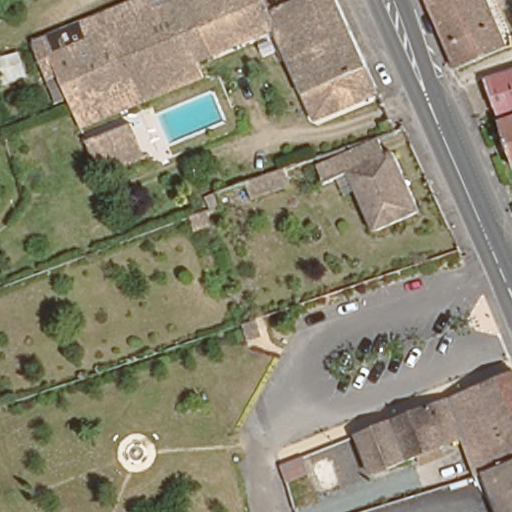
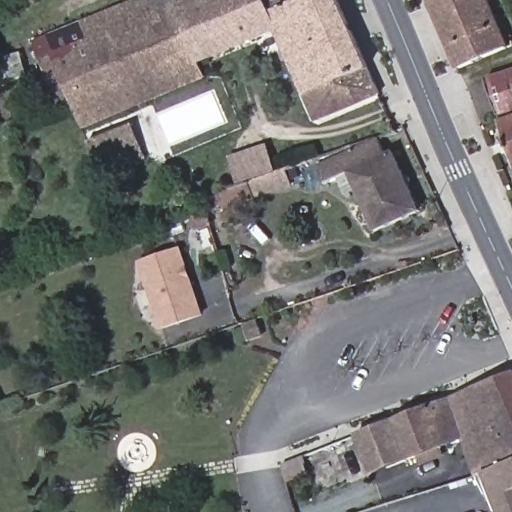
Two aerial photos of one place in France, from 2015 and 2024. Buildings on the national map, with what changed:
unchanged [(48,76),(38,51),(38,44),(147,0),(156,0),(159,10),(183,0),(267,0),(267,2),(254,7),(189,35),(195,51),(113,85),(111,80),(70,97),(59,72),(48,76)]
unchanged [(113,85),(195,51),(189,35),(254,7),(267,2),(272,0),(340,0),(381,94),(317,122),(276,32),(201,63),(207,78),(84,129),(75,107),(70,97),(111,80),(113,85)]
unchanged [(430,0),(490,0),(510,48),(460,70),(430,0)]
unchanged [(0,85),(0,57),(19,52),(29,79),(0,85)]
unchanged [(489,81),(512,73),(512,112),(500,116),(489,81)]
unchanged [(512,119),(512,147),(503,122),(512,119)]
unchanged [(113,175),(102,179),(89,146),(133,128),(147,161),(119,172),(113,175)]
unchanged [(388,157),(396,153),(421,211),(377,231),(358,191),(349,195),(341,177),(326,184),(319,165),(381,141),(388,157)]
unchanged [(230,194),(311,167),(316,179),(234,208),(230,194)]
unchanged [(194,216),(207,212),(208,214),(211,225),(210,226),(198,230),(194,218),(194,216)]
new [(137,262),(181,248),(204,317),(161,332),(137,262)]
unchanged [(266,335),(251,340),(247,328),(262,323),(266,335)]
unchanged [(512,463),(488,472),(478,476),(473,463),(463,437),(375,472),(360,433),(512,374),(512,463)]
unchanged [(287,486),(279,462),(305,455),(311,477),(287,486)]
unchanged [(488,472),(512,463),(512,512),(503,512),(488,472)]

